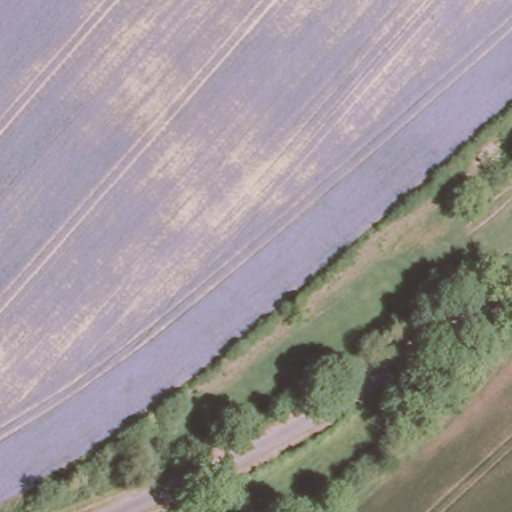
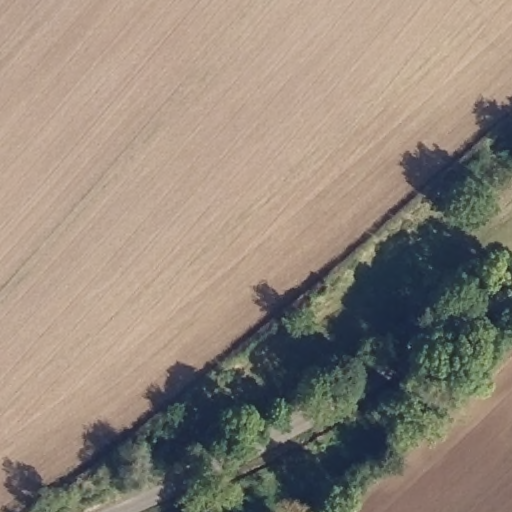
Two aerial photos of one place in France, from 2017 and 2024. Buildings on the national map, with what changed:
[]

